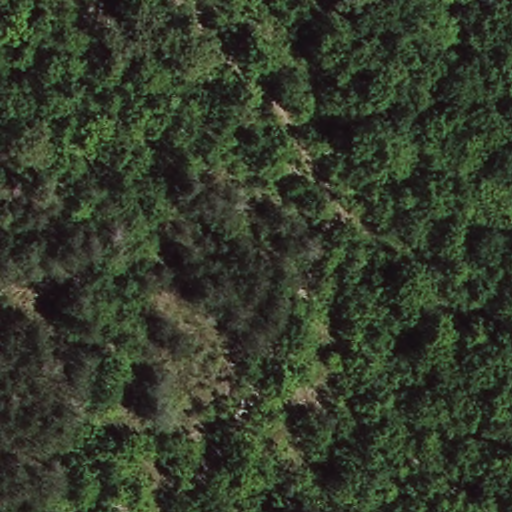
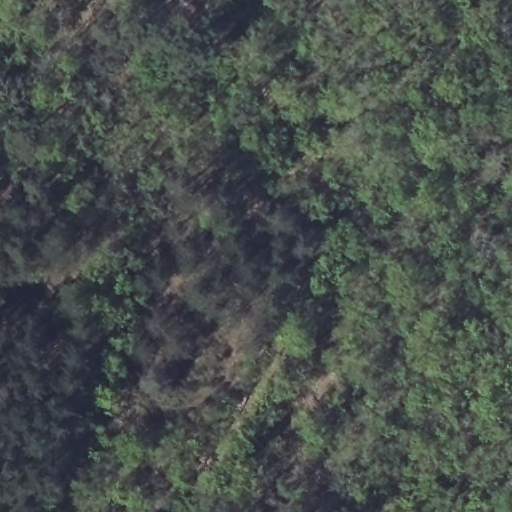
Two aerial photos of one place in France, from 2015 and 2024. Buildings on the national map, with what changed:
unchanged [(292,129),(298,127),(305,129),(308,147),(305,150),(298,151),(292,150),(288,145),(287,139),(288,133),(292,129)]

